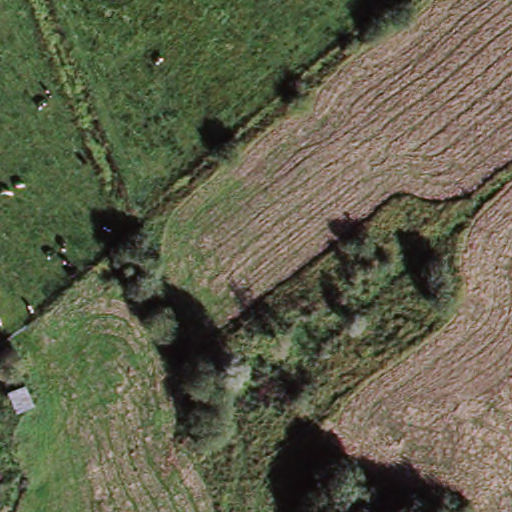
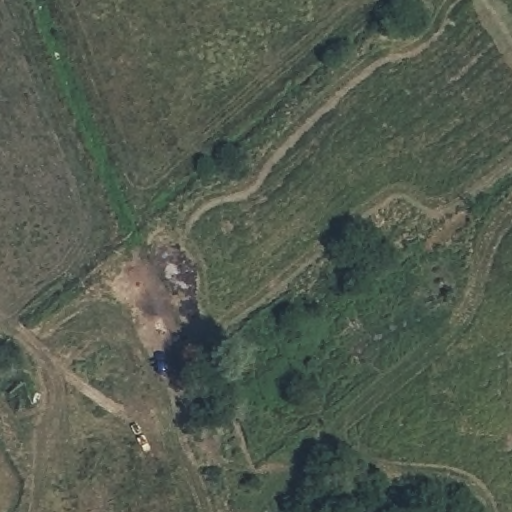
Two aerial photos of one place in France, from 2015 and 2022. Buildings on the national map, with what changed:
unchanged [(17,413),(4,390),(24,380),(32,405),(17,413)]

